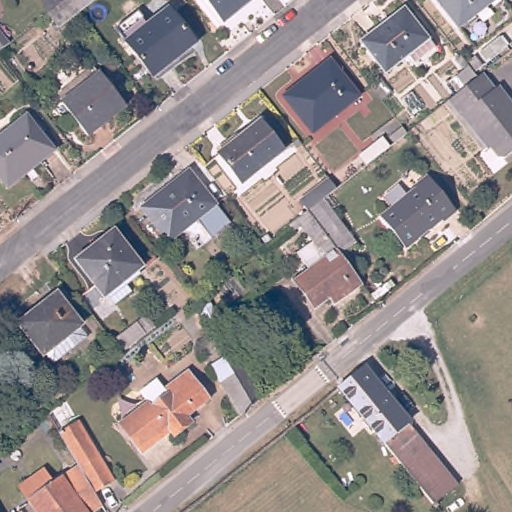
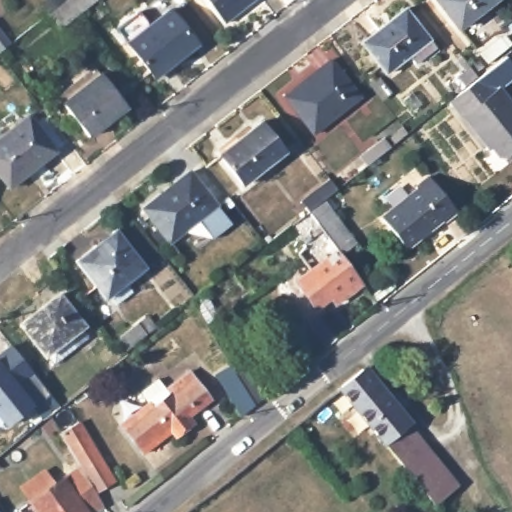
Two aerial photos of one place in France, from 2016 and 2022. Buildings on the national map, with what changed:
unchanged [(64,22),(54,9),(65,0),(92,0),(84,6),(64,22)]
unchanged [(209,0),(258,0),(228,24),(209,0)]
unchanged [(442,0),(499,0),(464,27),(442,0)]
unchanged [(174,6),(201,40),(159,74),(132,39),(174,6)]
unchanged [(419,65),(413,58),(390,75),(365,43),(409,9),(434,40),(441,49),(419,65)]
unchanged [(11,44),(0,53),(0,30),(11,44)]
unchanged [(336,60),(365,98),(318,134),(290,98),(336,60)]
unchanged [(137,108),(99,138),(72,104),(74,103),(67,94),(102,67),(109,75),(110,74),(137,108)]
unchanged [(486,70),(498,86),(502,83),(512,94),(512,153),(510,154),(501,153),(494,144),(491,145),(465,113),(464,114),(451,98),(483,73),(486,70)]
unchanged [(31,113),(60,148),(14,184),(0,166),(0,137),(31,113)]
unchanged [(265,118),(289,148),(248,180),(224,150),(265,118)]
unchanged [(359,157),(383,139),(390,147),(366,166),(359,157)]
unchanged [(194,168),(234,219),(215,234),(200,215),(173,237),(148,204),(194,168)]
unchanged [(421,189),(419,187),(431,177),(461,213),(449,223),(446,219),(409,249),(386,219),(421,189)]
unchanged [(341,190),(327,202),(321,194),(336,182),(341,190)]
unchanged [(340,306),(334,299),(320,309),(300,282),(315,271),(303,254),(319,242),(307,227),(300,233),(295,226),(314,212),(327,202),(360,244),(346,255),(368,285),(340,306)]
unchanged [(121,299),(113,290),(110,294),(81,257),(120,227),(148,263),(129,278),(136,287),(121,299)]
unchanged [(66,295),(91,327),(54,356),(29,324),(66,295)]
unchanged [(206,297),(219,319),(208,325),(195,304),(206,297)]
unchanged [(136,325),(144,334),(125,350),(117,340),(136,325)]
new [(33,405),(5,427),(0,421),(0,352),(8,345),(47,394),(33,405)]
unchanged [(235,370),(230,361),(241,354),(265,393),(254,402),(240,413),(220,379),(235,370)]
unchanged [(372,364),(416,422),(392,442),(345,386),(372,364)]
unchanged [(193,372),(200,382),(215,401),(193,418),(198,423),(180,437),(175,432),(147,454),(124,425),(154,402),(170,389),(178,383),(193,372)]
unchanged [(416,422),(465,483),(441,502),(392,442),(416,422)]
unchanged [(82,423),(118,481),(99,492),(84,467),(64,434),(82,423)]
unchanged [(99,492),(107,506),(99,512),(43,512),(35,500),(84,467),(99,492)]
unchanged [(7,512),(0,512),(0,500),(7,512)]

